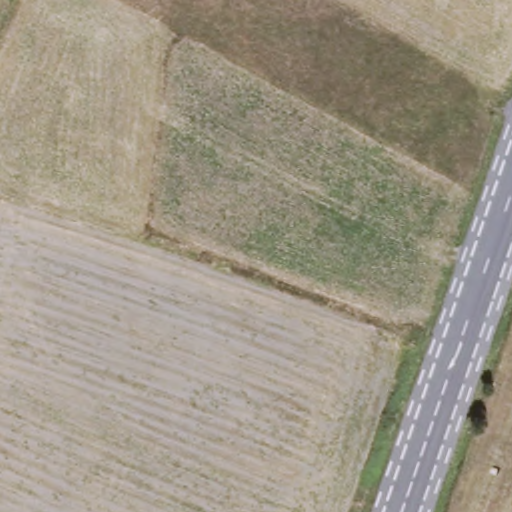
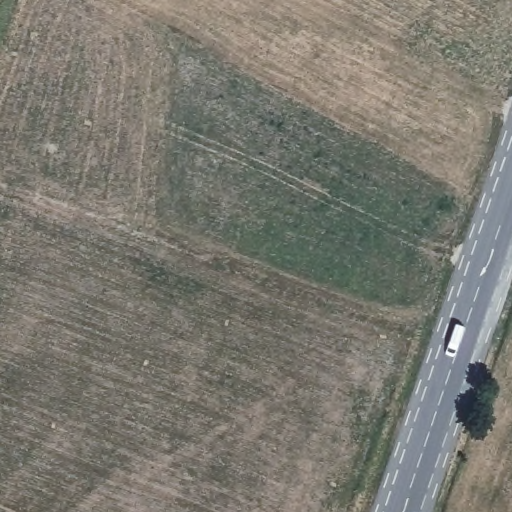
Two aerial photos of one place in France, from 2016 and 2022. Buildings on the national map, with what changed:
[]

